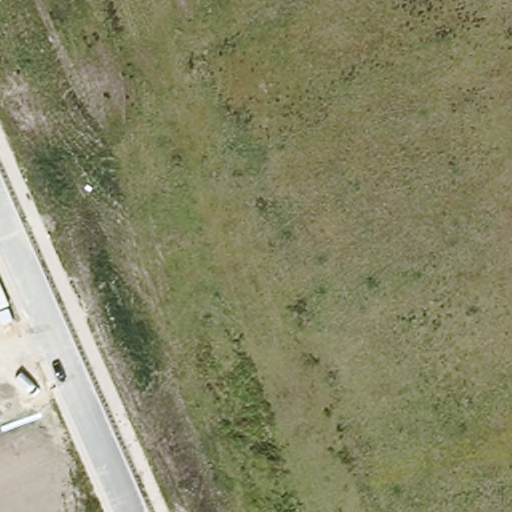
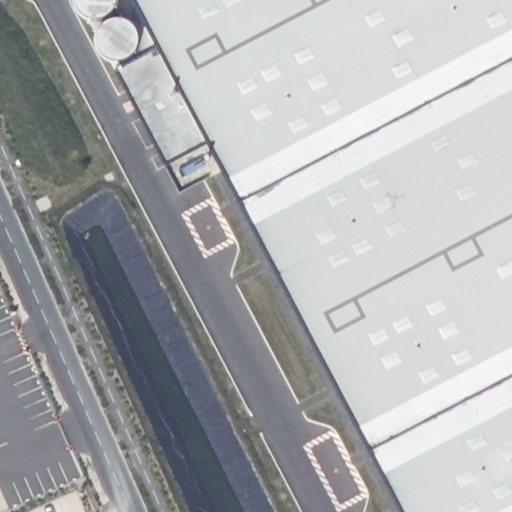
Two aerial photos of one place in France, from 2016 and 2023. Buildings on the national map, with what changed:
new [(165,165),(116,71),(161,53),(133,0),(512,0),(512,512),(400,512),(209,145),(165,165)]

